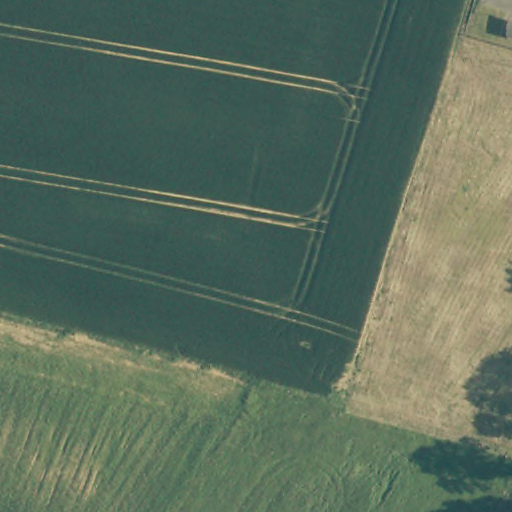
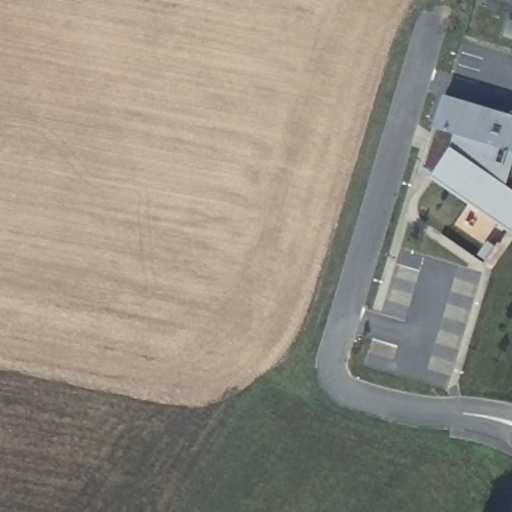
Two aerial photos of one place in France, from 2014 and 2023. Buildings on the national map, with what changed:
new [(512,114),(512,230),(424,171),(436,127),(447,94),(512,114)]

